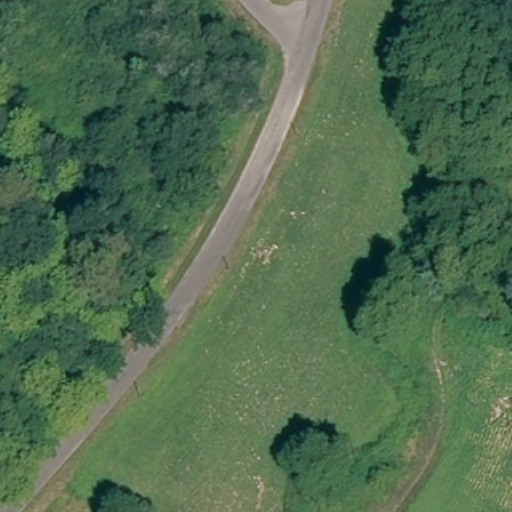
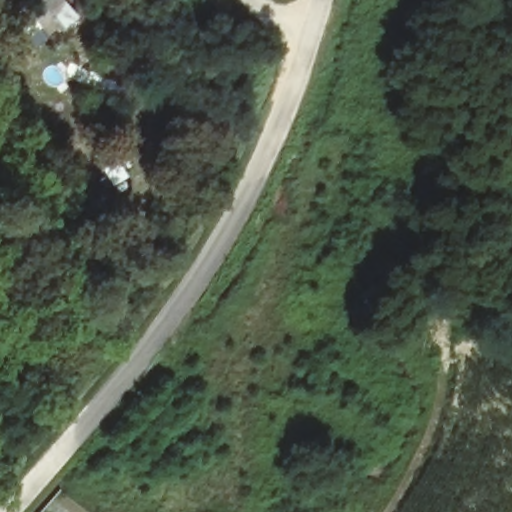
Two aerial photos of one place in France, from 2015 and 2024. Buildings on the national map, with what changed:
unchanged [(6,365),(0,369),(0,357),(6,365)]

